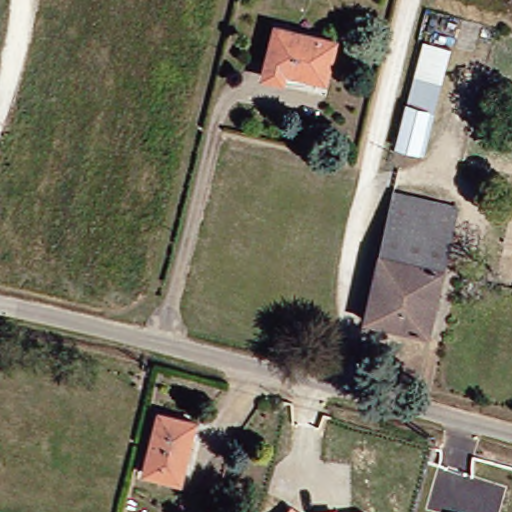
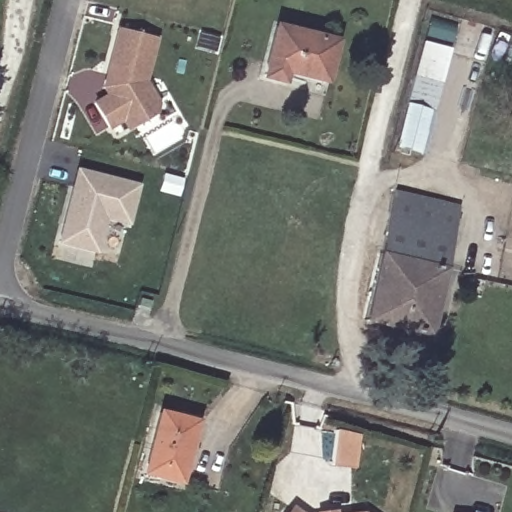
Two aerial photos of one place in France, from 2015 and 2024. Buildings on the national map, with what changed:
new [(121,26),(159,36),(148,79),(165,106),(131,126),(126,116),(113,124),(98,100),(111,92),(106,84),(110,70),(121,26)]
unchanged [(274,28),(330,41),(320,80),(283,70),(281,79),(263,74),(274,28)]
unchanged [(399,103),(415,40),(441,45),(428,105),(417,155),(387,149),(399,103)]
new [(81,166),(141,182),(132,219),(110,214),(101,248),(64,239),(81,166)]
unchanged [(386,192),(450,208),(422,334),(358,322),(386,192)]
unchanged [(143,473),(150,438),(155,415),(185,421),(179,446),(181,447),(175,479),(143,473)]
unchanged [(291,505),(301,512),(286,512),(291,505)]
unchanged [(315,512),(338,509),(338,512),(315,512)]

